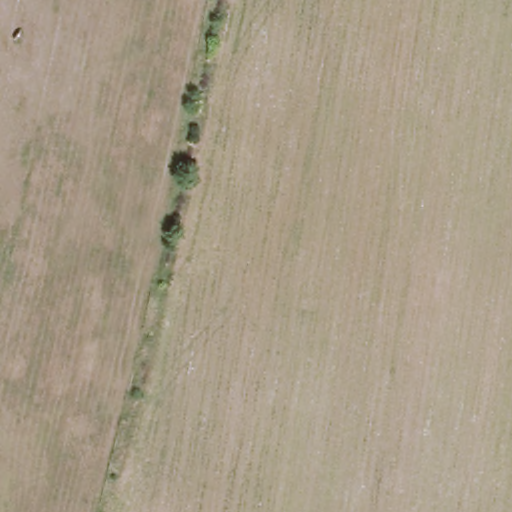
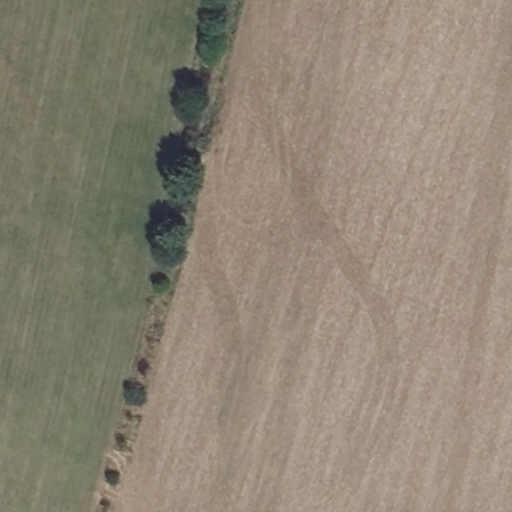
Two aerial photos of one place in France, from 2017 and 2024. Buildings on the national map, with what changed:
[]

